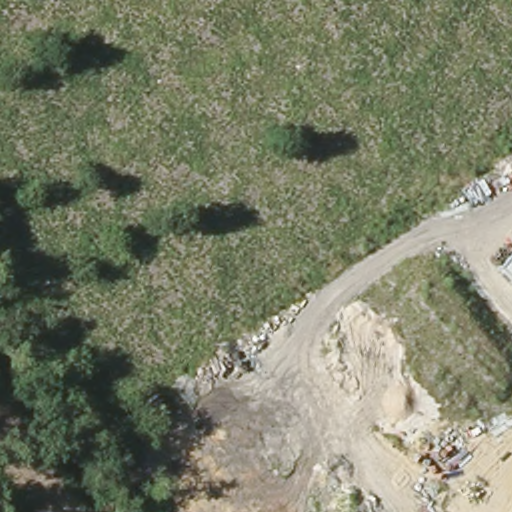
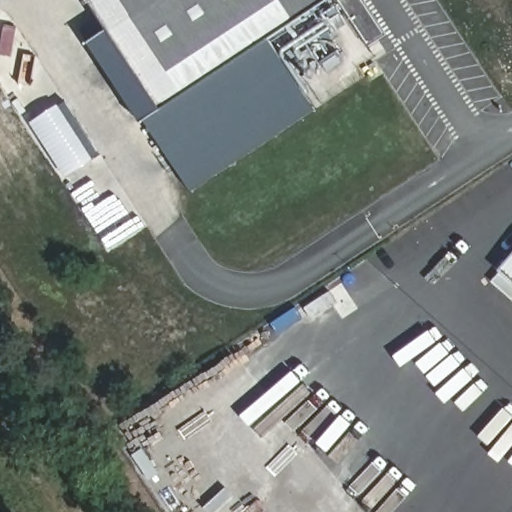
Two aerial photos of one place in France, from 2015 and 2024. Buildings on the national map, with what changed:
new [(269,38),(161,109),(145,120),(141,122),(90,43),(109,30),(89,0),(327,0),(269,38)]
new [(316,110),(192,192),(145,120),(161,109),(269,38),(316,110)]
unchanged [(501,269),(512,257),(512,279),(501,269)]

